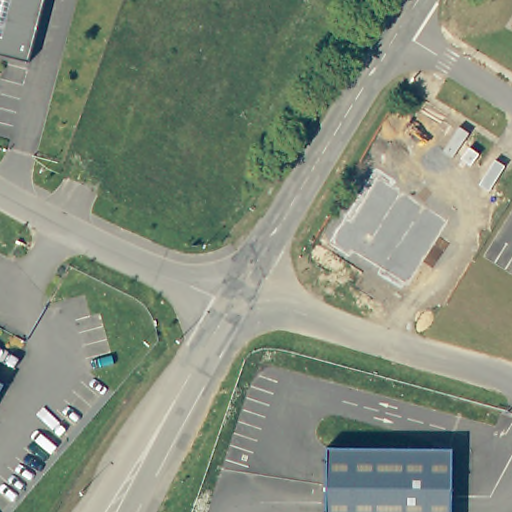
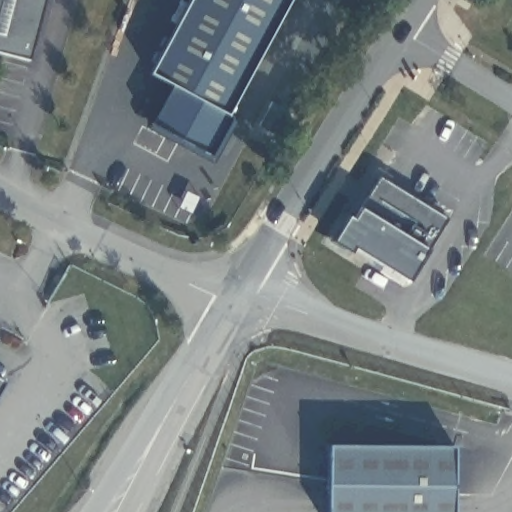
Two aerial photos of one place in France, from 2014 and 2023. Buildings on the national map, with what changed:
unchanged [(0,55),(0,0),(47,0),(30,63),(0,55)]
new [(206,157),(151,124),(171,86),(150,73),(191,0),(289,0),(226,116),(206,157)]
unchanged [(348,252),(346,257),(324,243),(342,212),(347,216),(353,220),(361,208),(379,177),(447,219),(427,251),(408,283),(348,252)]
unchanged [(9,388),(0,403),(0,382),(9,388)]
unchanged [(440,446),(455,446),(455,512),(328,512),(328,445),(440,446)]

